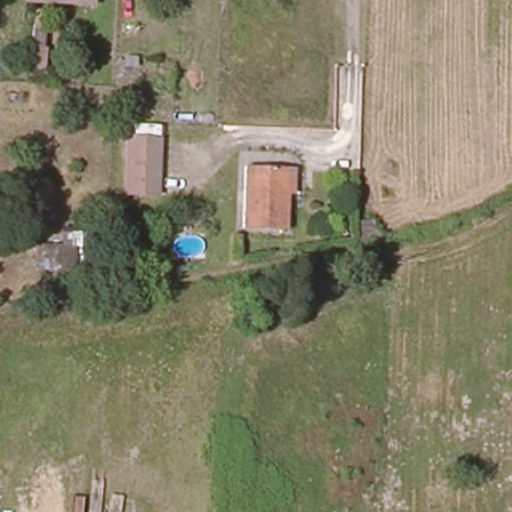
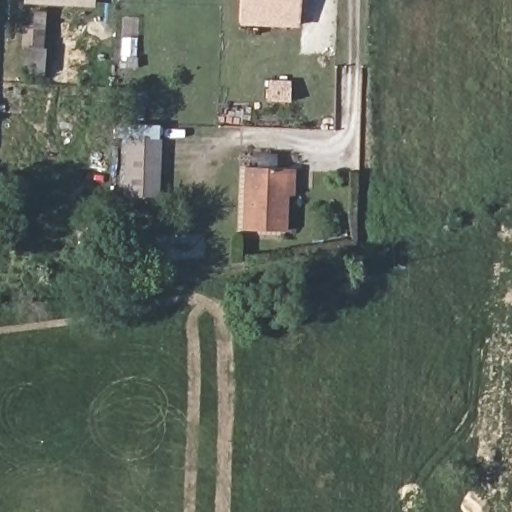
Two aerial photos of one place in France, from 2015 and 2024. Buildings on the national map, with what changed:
unchanged [(92,0),(92,1),(76,0),(92,0)]
new [(239,0),(301,0),(300,26),(239,24),(239,0)]
unchanged [(159,138),(159,192),(126,192),(126,137),(159,138)]
unchanged [(242,234),(245,170),(283,172),(292,172),(291,198),(283,198),(282,235),(242,234)]

